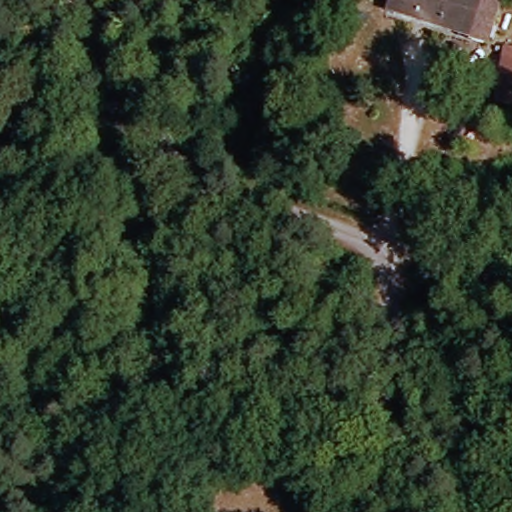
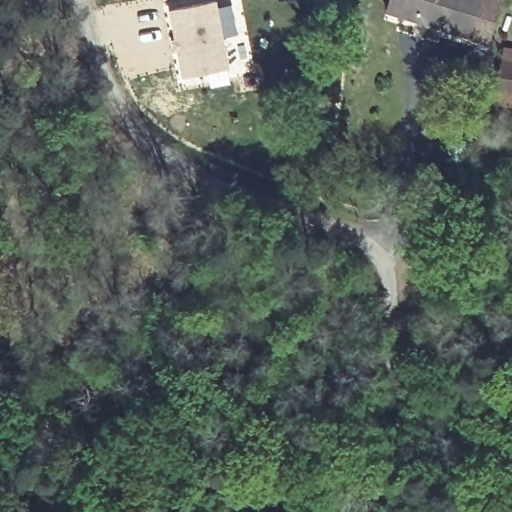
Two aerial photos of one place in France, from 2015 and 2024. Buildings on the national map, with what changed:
new [(170,9),(214,0),(217,0),(230,67),(183,77),(170,9)]
unchanged [(485,46),(388,12),(392,0),(500,0),(485,46)]
unchanged [(499,90),(500,85),(504,61),(512,62),(512,93),(499,90)]

